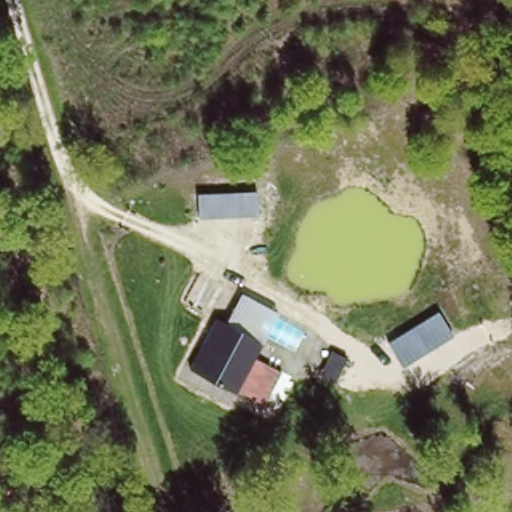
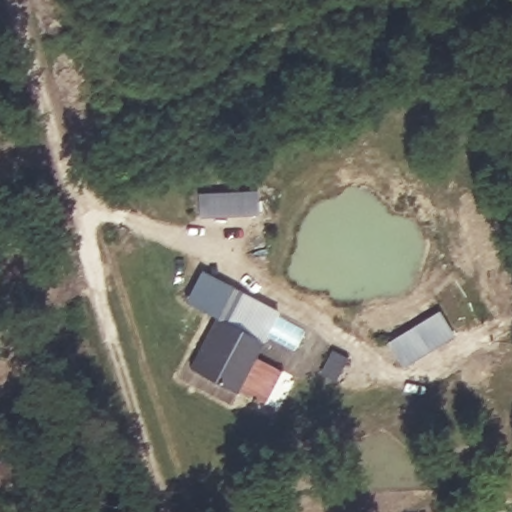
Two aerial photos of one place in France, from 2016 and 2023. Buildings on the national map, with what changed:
unchanged [(258,186),(259,212),(198,215),(196,189),(258,186)]
new [(230,313),(222,309),(217,318),(184,300),(200,269),(242,292),(230,313)]
unchanged [(242,292),(281,313),(270,333),(243,320),(230,313),(242,292)]
unchanged [(215,377),(194,364),(222,309),(243,320),(215,377)]
unchanged [(455,334),(402,367),(387,341),(439,311),(455,334)]
unchanged [(243,320),(270,333),(255,361),(273,373),(259,401),(215,377),(243,320)]

